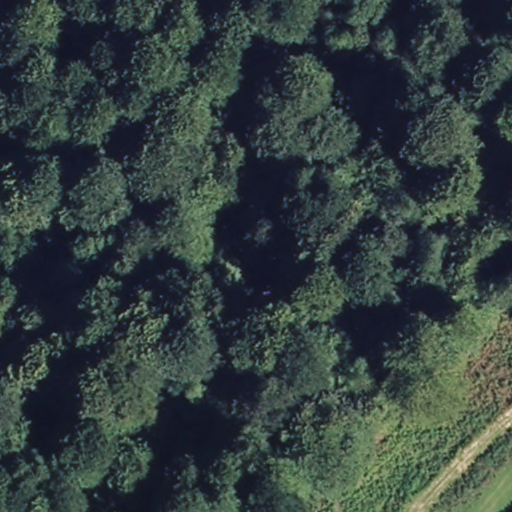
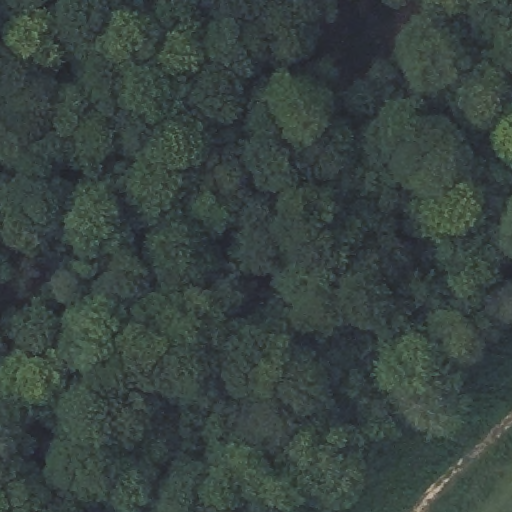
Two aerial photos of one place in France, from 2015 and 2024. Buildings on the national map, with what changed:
[]

